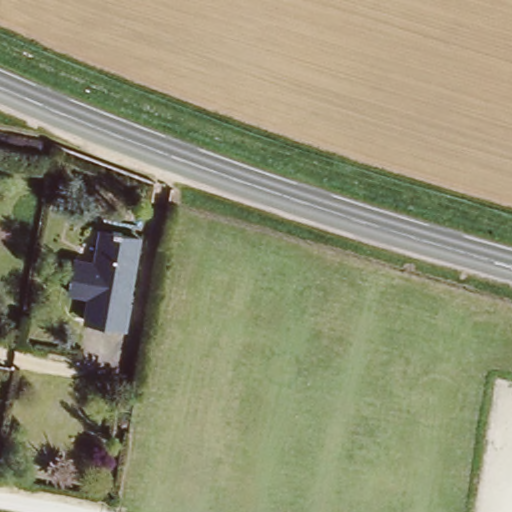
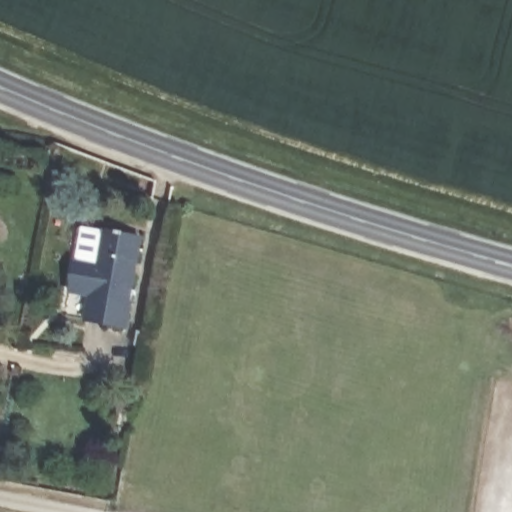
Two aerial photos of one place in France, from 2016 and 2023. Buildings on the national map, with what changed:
unchanged [(87,261),(93,229),(135,238),(123,300),(127,302),(122,329),(82,321),(88,295),(62,290),(68,258),(87,261)]

